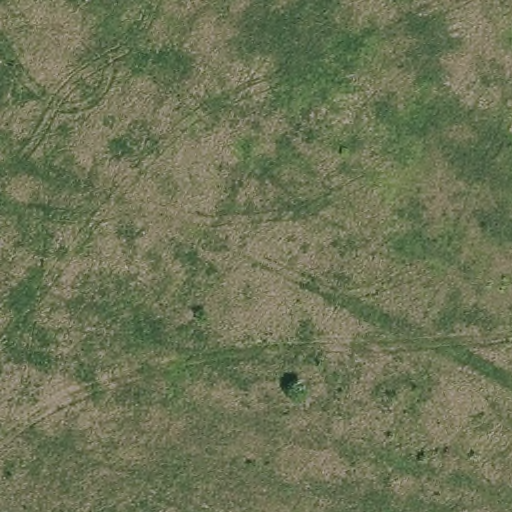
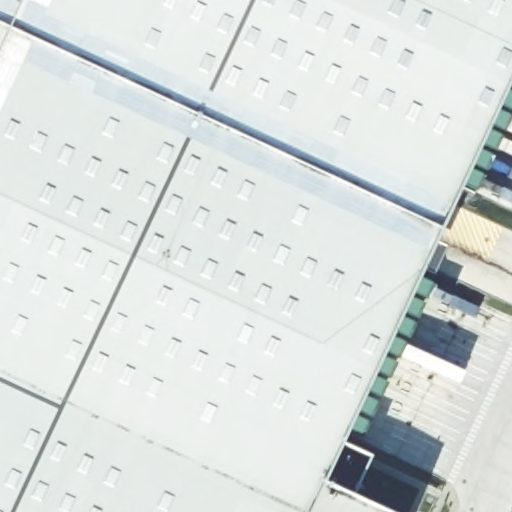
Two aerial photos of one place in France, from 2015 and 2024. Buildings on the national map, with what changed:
new [(322,475),(402,512),(0,512),(0,0),(512,0),(512,64),(322,475)]

